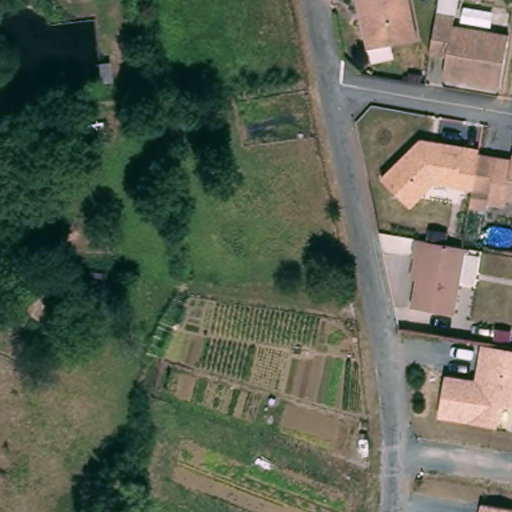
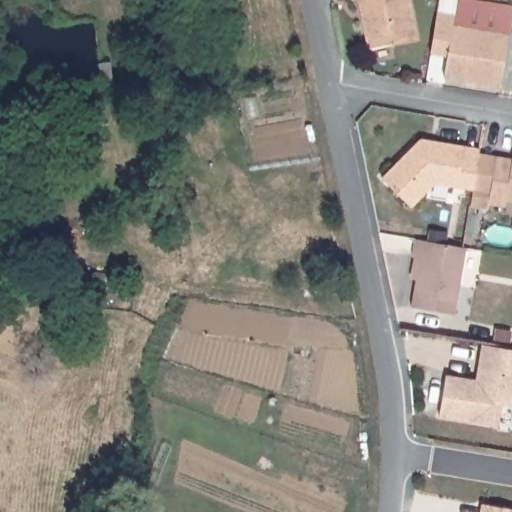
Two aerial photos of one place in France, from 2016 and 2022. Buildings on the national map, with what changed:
unchanged [(370,15),(367,0),(409,0),(418,42),(368,50),(363,17),(370,15)]
unchanged [(440,12),(456,15),(454,26),(509,36),(500,89),(444,80),(448,62),(432,58),(440,12)]
unchanged [(476,191),(438,185),(412,209),(383,179),(425,140),(483,150),(476,191)]
unchanged [(503,152),(494,204),(474,200),(476,191),(483,150),(503,152)]
unchanged [(512,154),(512,198),(511,198),(509,206),(494,204),(503,152),(512,154)]
unchanged [(461,246),(468,247),(455,313),(413,305),(422,256),(412,255),(415,237),(461,246)]
unchanged [(480,343),(512,348),(512,407),(500,406),(496,427),(436,417),(444,373),(474,378),(480,343)]
unchanged [(512,512),(479,512),(480,502),(512,507),(512,512)]

